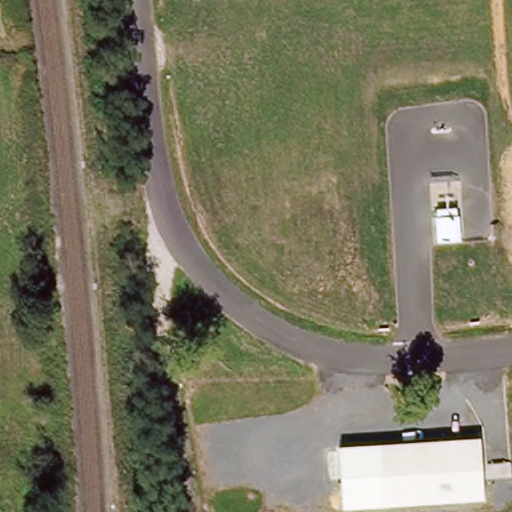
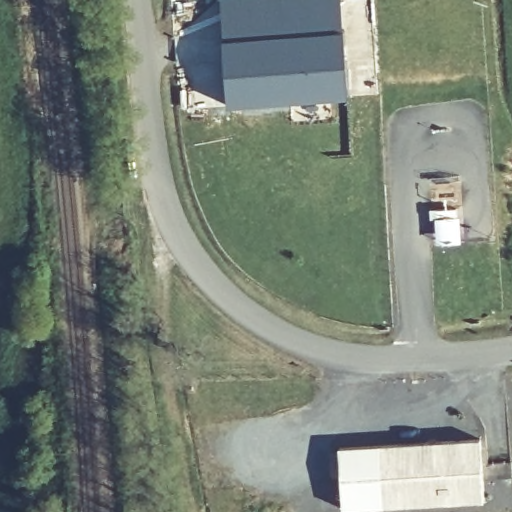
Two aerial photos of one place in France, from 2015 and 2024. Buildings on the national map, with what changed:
new [(349,99),(228,107),(222,38),(345,29),(349,99)]
unchanged [(458,240),(438,242),(435,211),(457,208),(458,240)]
unchanged [(382,505),(378,445),(480,437),(483,498),(382,505)]
unchanged [(342,507),(338,448),(378,445),(382,505),(342,507)]

